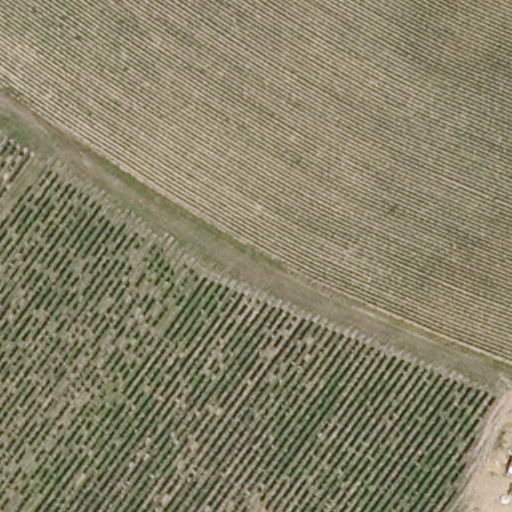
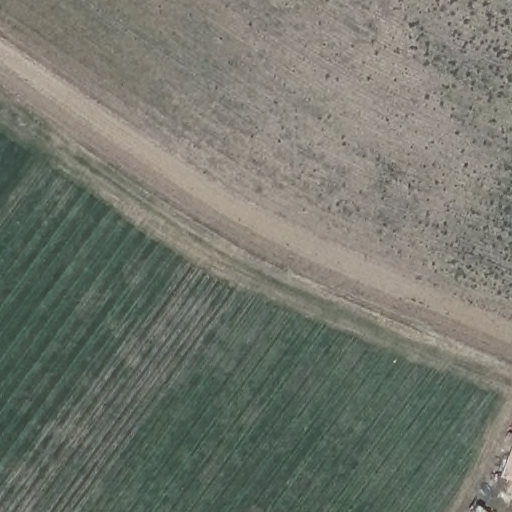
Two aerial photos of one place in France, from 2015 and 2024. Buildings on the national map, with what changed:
unchanged [(512,471),(512,476),(511,475),(512,471)]

